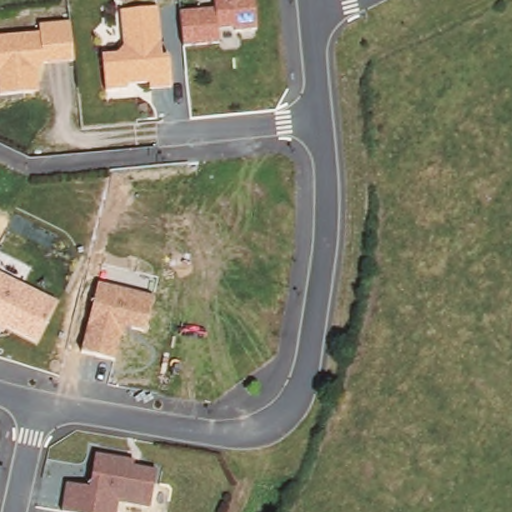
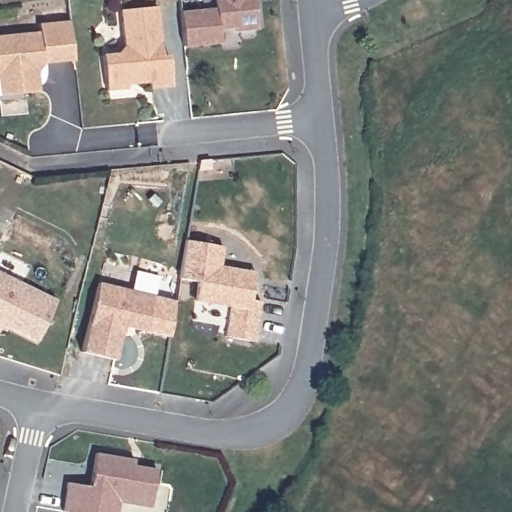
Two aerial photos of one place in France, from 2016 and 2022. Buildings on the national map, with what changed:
unchanged [(183,49),(180,13),(215,10),(214,0),(254,0),(256,27),(219,30),(220,47),(183,49)]
unchanged [(124,45),(120,10),(160,6),(165,57),(171,56),(174,86),(150,88),(149,84),(128,85),(128,89),(105,90),(102,55),(119,54),(124,45)]
unchanged [(40,23),(70,20),(75,62),(44,65),(38,72),(39,92),(0,94),(0,34),(40,31),(40,23)]
new [(225,335),(227,325),(191,317),(199,281),(178,278),(185,239),(222,246),(220,264),(254,271),(250,298),(261,300),(255,340),(225,335)]
unchanged [(37,342),(6,328),(5,331),(0,329),(0,271),(57,297),(37,342)]
unchanged [(156,296),(147,333),(125,329),(121,335),(115,361),(82,352),(99,282),(156,296)]
unchanged [(66,482),(92,486),(96,453),(136,460),(136,465),(157,468),(151,509),(120,503),(118,512),(64,512),(62,511),(66,482)]

